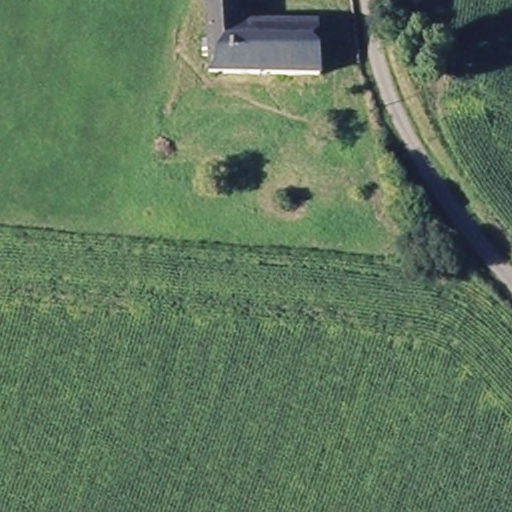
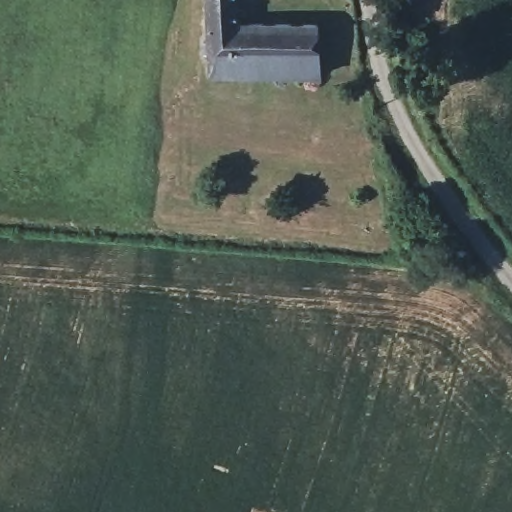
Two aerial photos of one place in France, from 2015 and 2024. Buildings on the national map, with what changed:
unchanged [(347,7),(356,66),(206,80),(189,0),(240,0),(242,17),(347,7)]

